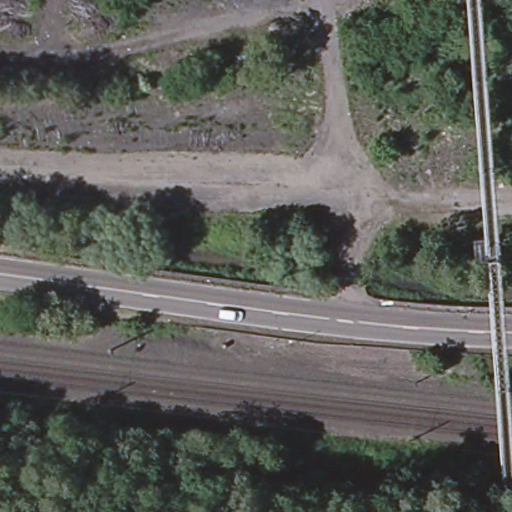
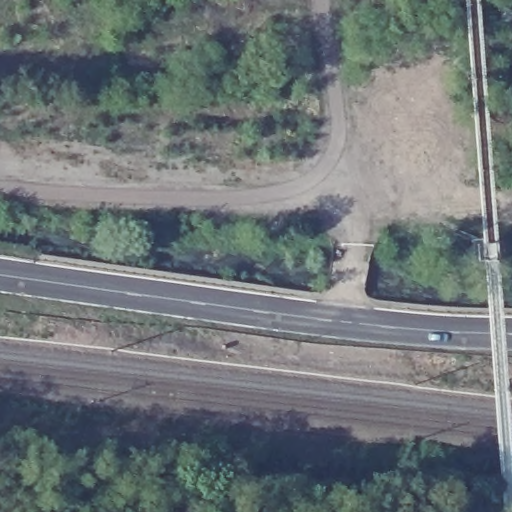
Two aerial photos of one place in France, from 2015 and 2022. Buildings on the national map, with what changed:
unchanged [(512,15),(512,27),(505,27),(505,15),(512,15)]

